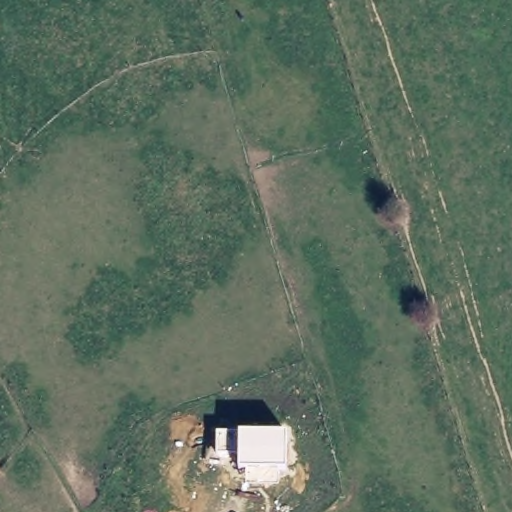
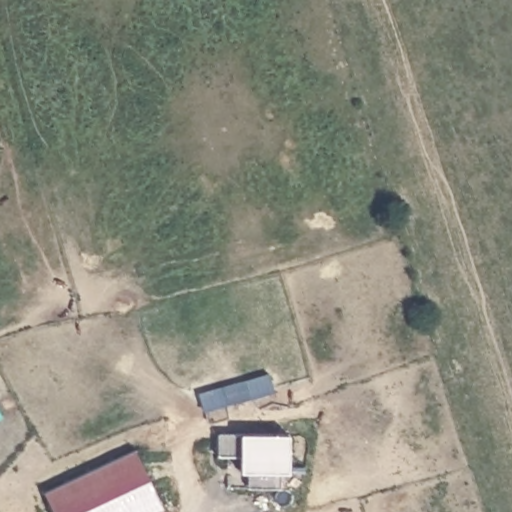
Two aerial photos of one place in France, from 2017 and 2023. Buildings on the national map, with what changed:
unchanged [(278,469),(279,487),(246,486),(246,469),(238,468),(238,455),(217,455),(217,432),(240,432),(287,433),(286,470),(278,469)]
new [(133,453),(159,502),(140,512),(53,512),(45,494),(133,453)]

